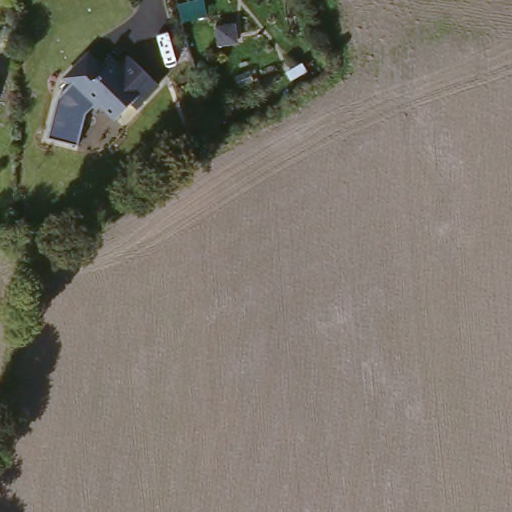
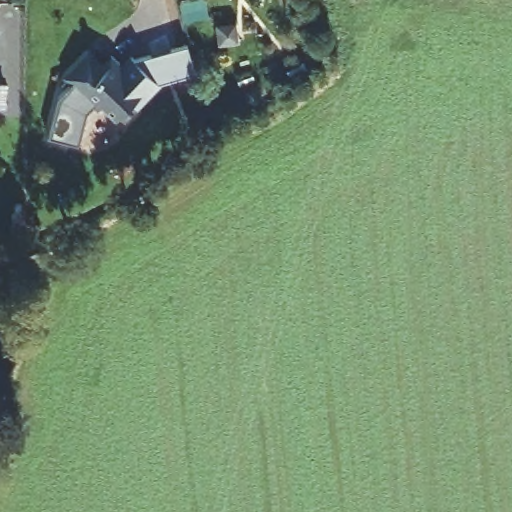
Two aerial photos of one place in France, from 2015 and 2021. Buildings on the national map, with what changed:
unchanged [(50,104),(99,49),(112,59),(119,52),(138,71),(130,80),(140,90),(113,119),(96,101),(84,118),(82,143),(45,137),(50,104)]

